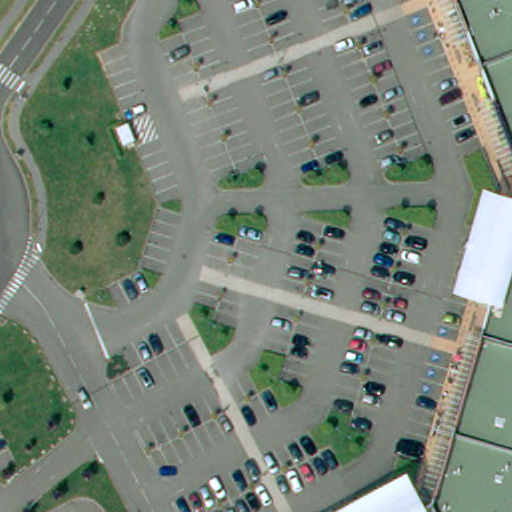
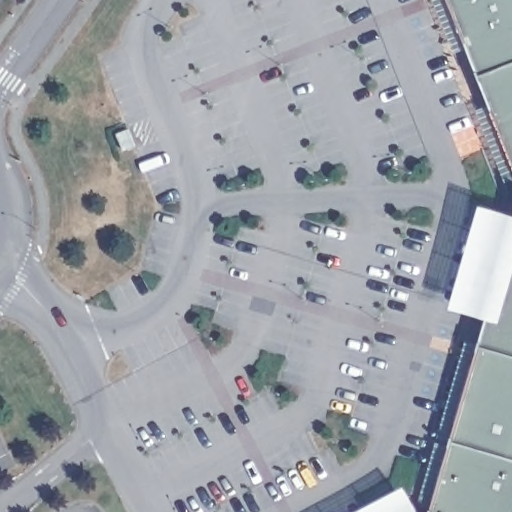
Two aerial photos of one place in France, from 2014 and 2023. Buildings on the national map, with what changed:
unchanged [(456,0),(512,0),(512,147),(456,0)]
unchanged [(439,503),(489,330),(493,320),(454,307),(487,206),(512,212),(512,512),(435,512),(439,503)]
unchanged [(409,483),(423,512),(355,512),(409,483)]

